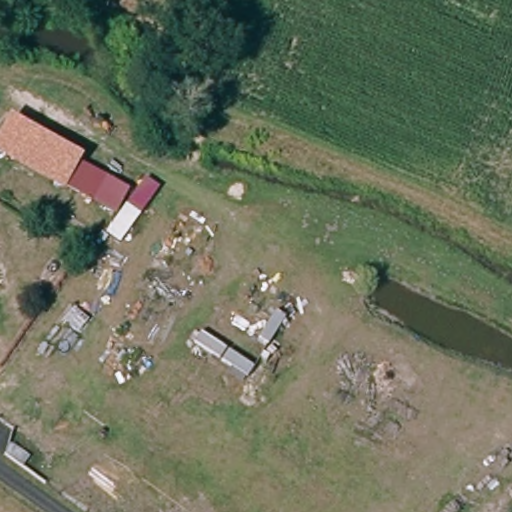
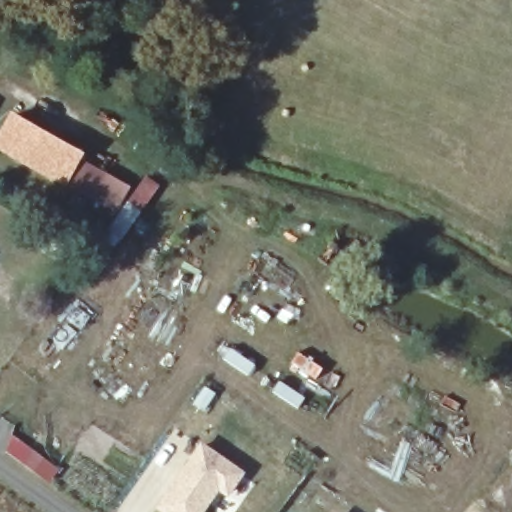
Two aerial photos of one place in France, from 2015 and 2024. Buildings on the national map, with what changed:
unchanged [(116,212),(92,199),(68,185),(0,149),(0,132),(8,112),(84,153),(81,160),(106,172),(129,187),(116,212)]
unchanged [(104,231),(146,175),(161,186),(120,242),(104,231)]
new [(244,472),(228,497),(217,491),(203,512),(160,512),(155,508),(201,441),(244,472)]

